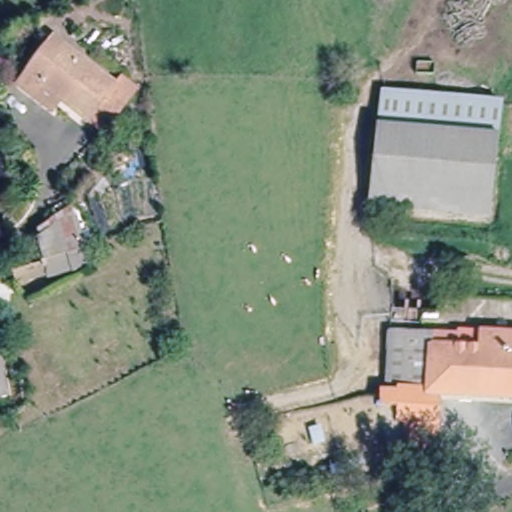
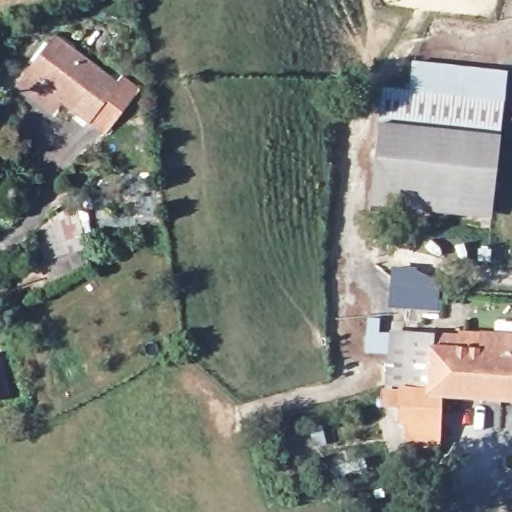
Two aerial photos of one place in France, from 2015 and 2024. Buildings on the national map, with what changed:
unchanged [(82,110),(35,74),(25,67),(51,32),(61,39),(109,74),(82,110)]
new [(409,94),(412,61),(507,71),(502,103),(409,94)]
unchanged [(381,92),(502,103),(499,137),(378,125),(381,92)]
unchanged [(493,206),(371,194),(378,125),(499,137),(493,206)]
new [(493,217),(370,208),(371,194),(493,206),(493,217)]
unchanged [(70,254),(74,267),(19,286),(14,272),(70,254)]
new [(391,266),(440,273),(439,311),(389,307),(391,266)]
unchanged [(395,319),(462,323),(462,320),(512,322),(512,383),(447,379),(443,435),(410,432),(411,407),(404,406),(404,391),(391,390),(395,319)]

